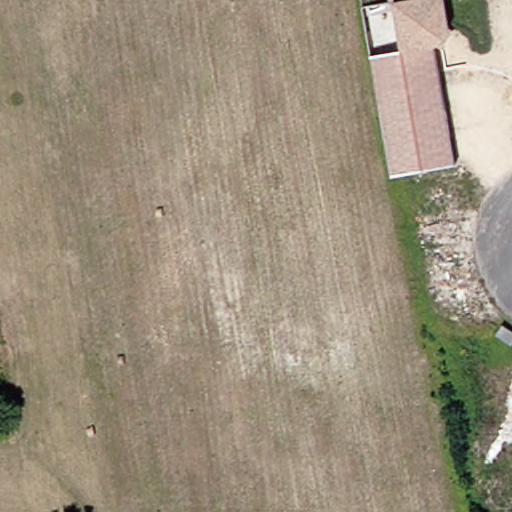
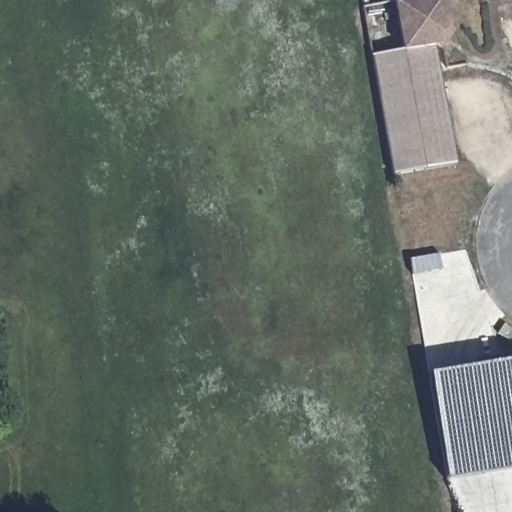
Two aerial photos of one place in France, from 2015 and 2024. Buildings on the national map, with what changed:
unchanged [(393,2),(406,0),(443,0),(448,29),(432,49),(452,165),(388,175),(368,55),(401,50),(393,2)]
unchanged [(406,0),(393,2),(388,3),(388,0),(406,0)]
new [(437,369),(512,356),(512,463),(454,472),(437,369)]

